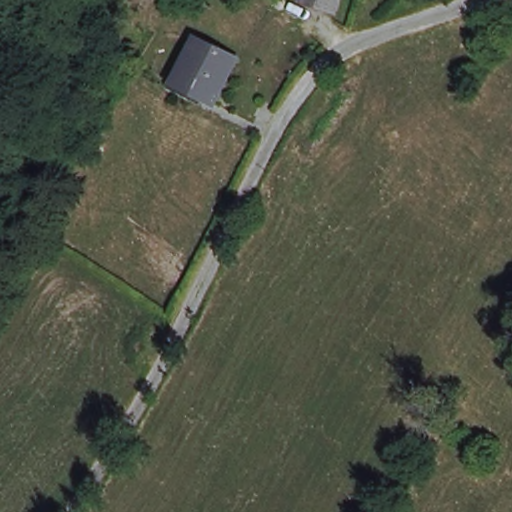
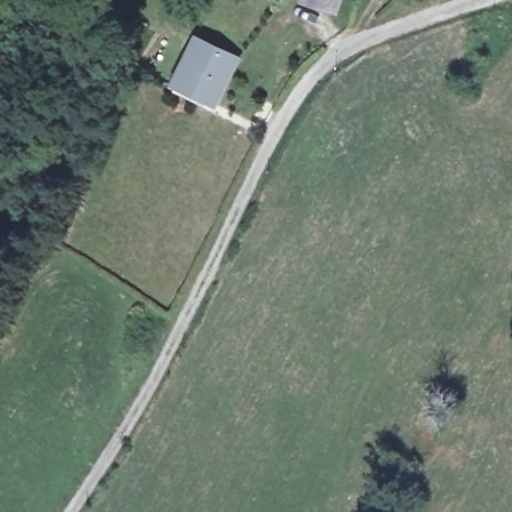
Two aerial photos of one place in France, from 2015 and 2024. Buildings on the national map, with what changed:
unchanged [(340,0),(332,13),(328,11),(307,0),(340,0)]
unchanged [(208,101),(173,77),(203,36),(237,61),(208,101)]

